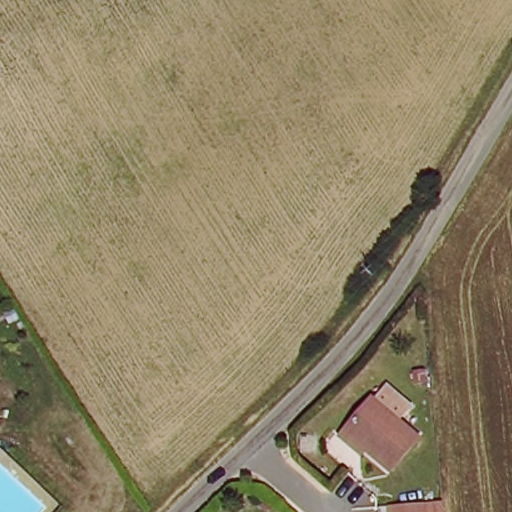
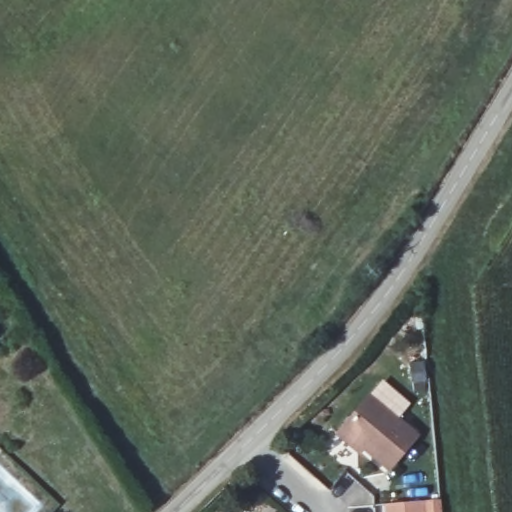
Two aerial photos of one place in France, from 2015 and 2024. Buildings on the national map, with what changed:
unchanged [(337,434),(345,425),(369,396),(416,434),(392,465),(365,443),(359,451),(337,434)]
unchanged [(407,505),(424,503),(425,512),(395,512),(395,505),(407,505)]

